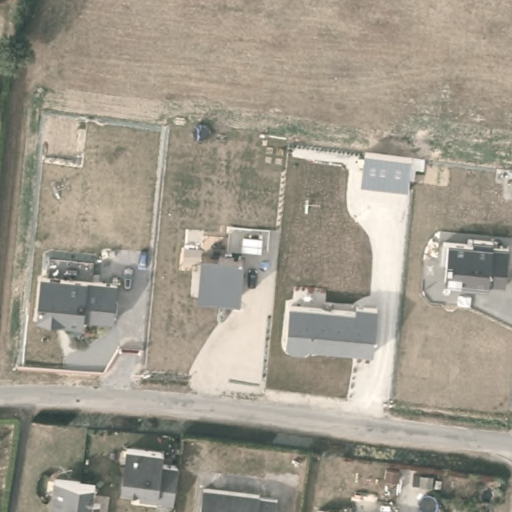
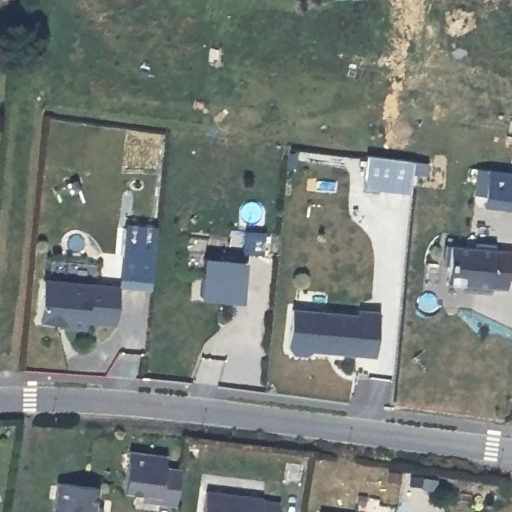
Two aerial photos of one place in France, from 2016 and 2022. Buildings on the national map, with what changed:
unchanged [(410,194),(363,187),(367,155),(413,160),(410,194)]
new [(483,197),(473,196),(476,168),(512,173),(512,211),(482,207),(483,197)]
unchanged [(506,291),(490,291),(461,287),(461,281),(447,279),(446,265),(441,265),(443,243),(492,244),(492,249),(508,250),(506,291)]
unchanged [(242,301),(199,296),(204,259),(245,262),(242,301)]
unchanged [(118,285),(115,324),(85,321),(84,329),(38,324),(42,278),(88,283),(118,285)]
unchanged [(375,357),(314,352),(308,357),(293,356),(286,347),(291,307),(378,312),(375,357)]
unchanged [(121,495),(120,487),(113,486),(114,445),(151,447),(153,459),(169,460),(166,498),(121,495)]
unchanged [(106,494),(103,512),(54,512),(60,479),(100,485),(99,493),(106,494)]
unchanged [(191,512),(194,483),(248,488),(248,494),(270,497),(268,512),(191,512)]
unchanged [(329,512),(308,512),(308,510),(329,512)]
unchanged [(392,512),(380,512),(380,511),(392,512)]

